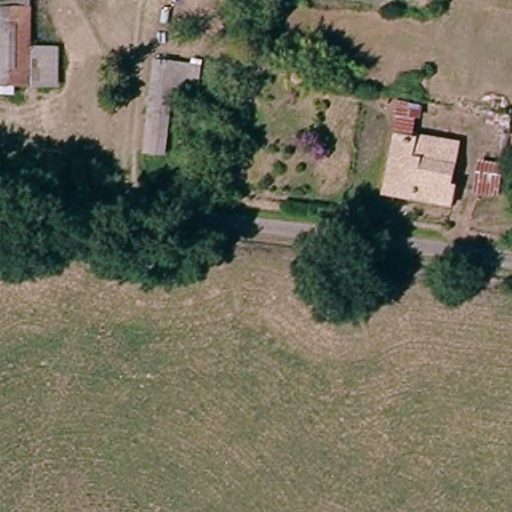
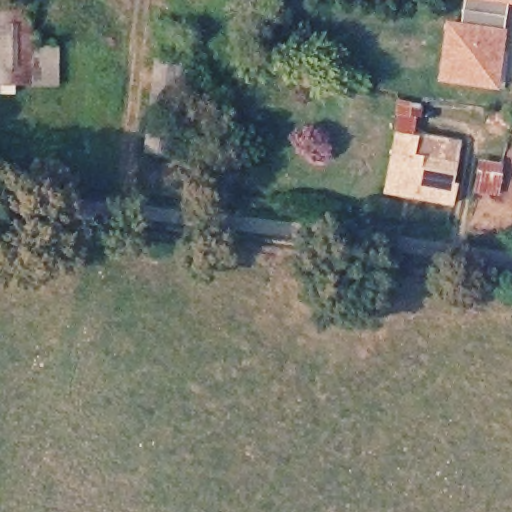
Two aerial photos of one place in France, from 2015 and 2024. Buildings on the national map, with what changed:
unchanged [(0,84),(0,0),(26,0),(26,5),(27,50),(54,49),(54,83),(27,84),(0,84)]
new [(512,0),(512,6),(473,0),(512,0)]
new [(446,22),(506,30),(498,91),(436,84),(446,22)]
unchanged [(170,144),(147,143),(149,50),(173,50),(170,144)]
unchanged [(450,180),(454,180),(450,202),(383,192),(393,131),(394,124),(398,96),(414,99),(409,133),(456,140),(450,180)]
unchanged [(481,176),(502,180),(499,194),(479,191),(481,176)]
unchanged [(463,221),(471,202),(490,204),(493,225),(463,221)]

